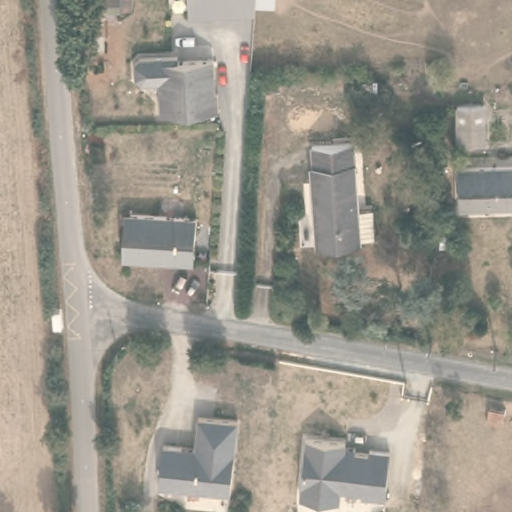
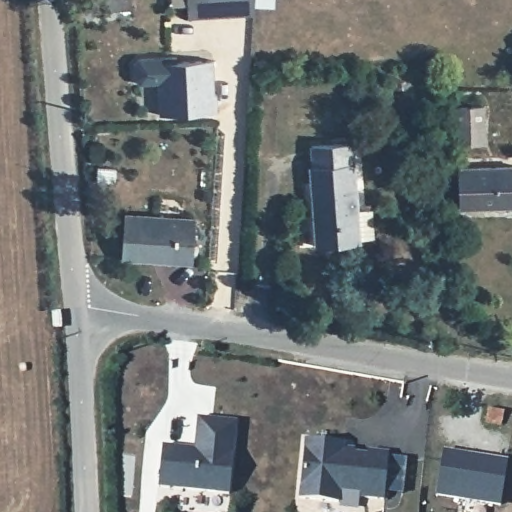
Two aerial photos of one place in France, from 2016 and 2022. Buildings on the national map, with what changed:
unchanged [(254,14),(241,15),(209,17),(208,0),(255,0),(254,14)]
unchanged [(140,83),(135,78),(134,63),(138,58),(175,55),(176,60),(212,58),(214,92),(216,91),(218,109),(160,113),(159,96),(158,81),(140,83)]
unchanged [(457,105),(460,105),(485,104),(486,142),(458,143),(457,105)]
unchanged [(375,239),(360,241),(360,242),(316,245),(315,223),(317,222),(312,144),(353,141),(358,208),(372,208),(375,239)]
unchanged [(458,167),(512,165),(512,206),(459,208),(458,167)]
unchanged [(123,257),(125,214),(196,217),(194,260),(165,259),(155,258),(123,257)]
unchanged [(505,409),(502,424),(486,421),(489,405),(505,409)]
unchanged [(238,420),(230,493),(159,486),(163,444),(183,446),(196,447),(199,416),(238,420)]
unchanged [(345,447),(355,448),(355,451),(369,453),(370,449),(390,451),(385,498),(361,496),(362,492),(341,489),(339,501),(300,497),(306,438),(346,442),(345,447)]
new [(443,450),(509,460),(501,506),(436,494),(443,450)]
new [(389,457),(406,460),(404,492),(386,491),(389,457)]

